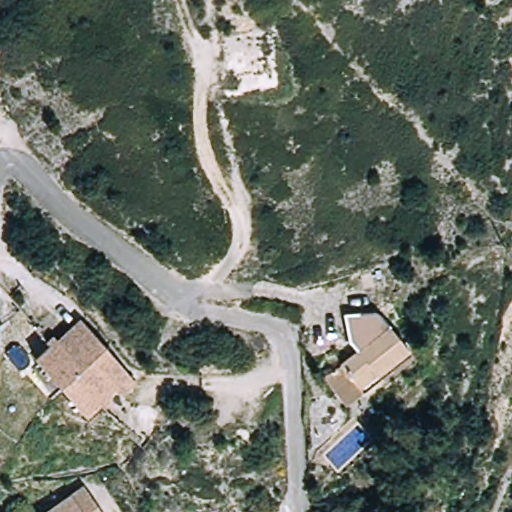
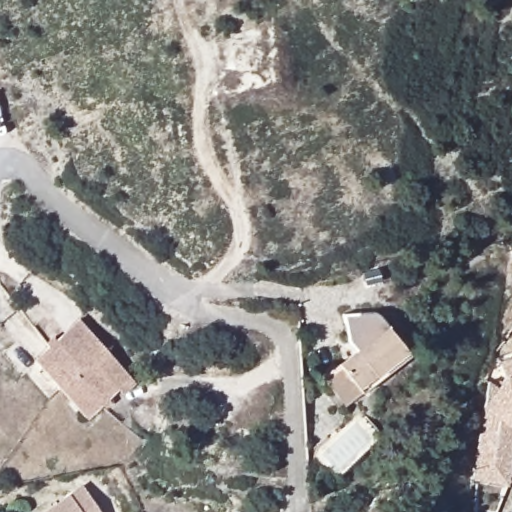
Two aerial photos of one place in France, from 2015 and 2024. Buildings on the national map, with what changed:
unchanged [(318,371),(334,358),(350,345),(343,336),(338,309),(368,306),(373,309),(375,311),(382,320),(401,344),(405,349),(375,373),(357,387),(341,399),(318,371)]
unchanged [(135,382),(122,394),(117,388),(85,416),(34,360),(80,319),(135,382)]
new [(502,373),(498,363),(512,357),(512,437),(506,482),(471,478),(481,407),(488,380),(492,384),(502,373)]
unchanged [(101,512),(45,512),(83,486),(101,512)]

